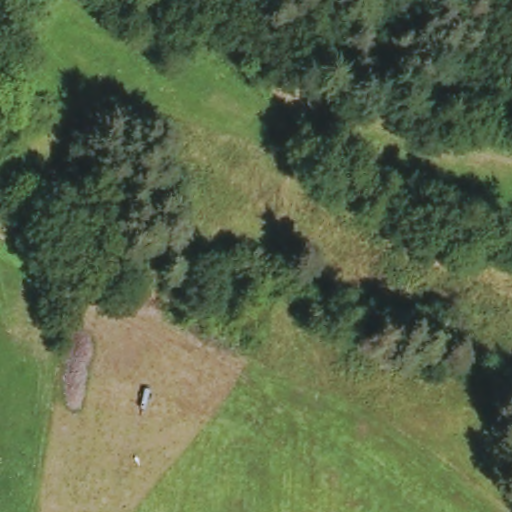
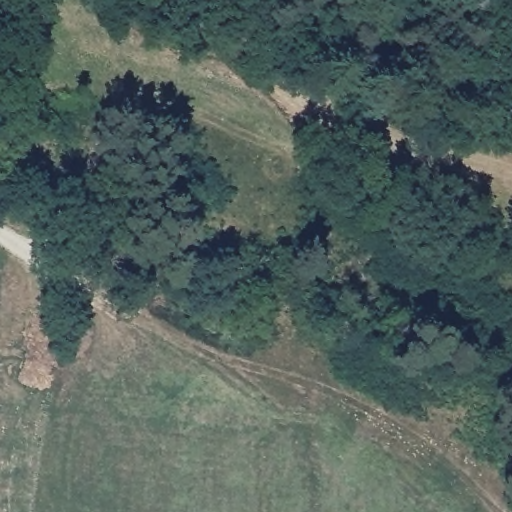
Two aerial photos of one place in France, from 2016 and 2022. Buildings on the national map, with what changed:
[]

